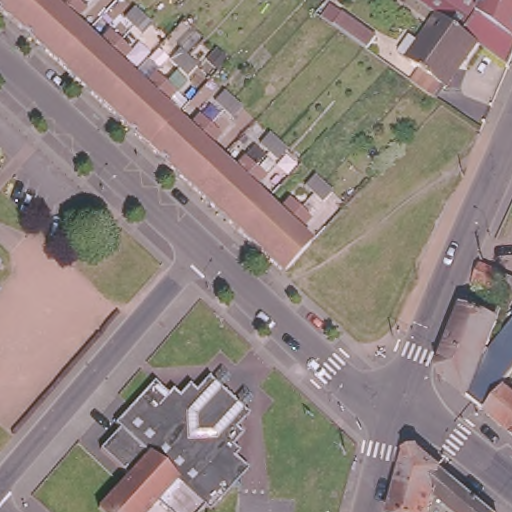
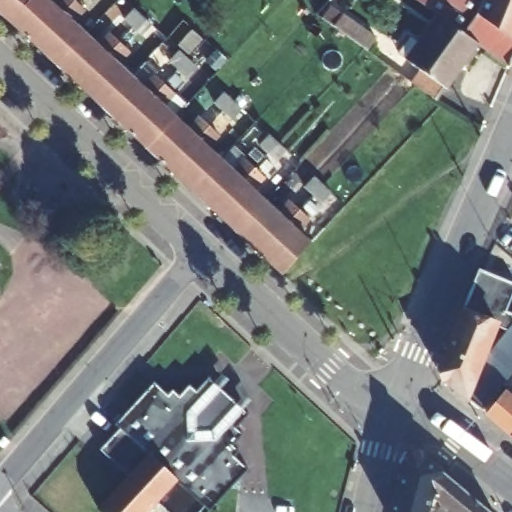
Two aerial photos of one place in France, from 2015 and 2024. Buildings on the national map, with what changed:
unchanged [(0,17),(0,0),(32,0),(10,26),(0,17)]
unchanged [(58,0),(72,0),(73,1),(33,45),(21,35),(10,26),(32,0),(43,0),(51,7),(58,0)]
unchanged [(506,64),(494,56),(493,55),(474,41),(462,33),(448,23),(437,15),(424,6),(419,2),(420,0),(512,0),(512,50),(506,64)]
unchanged [(56,67),(52,63),(33,45),(73,1),(84,11),(71,26),(84,38),(56,67)]
unchanged [(142,36),(133,28),(125,21),(135,10),(142,16),(151,26),(142,36)]
unchanged [(448,23),(462,33),(474,41),(443,84),(441,83),(431,96),(409,81),(419,66),(409,60),(418,46),(414,45),(437,15),(448,23)]
unchanged [(98,49),(110,36),(118,44),(79,89),(56,67),(84,38),(98,49)]
unchanged [(99,108),(79,89),(118,44),(130,55),(118,69),(128,78),(99,108)]
unchanged [(187,79),(178,70),(171,62),(180,53),(188,60),(196,69),(187,79)]
unchanged [(141,90),(154,76),(164,86),(123,130),(110,118),(99,108),(128,78),(141,90)]
unchanged [(173,95),(161,109),(173,121),(145,151),(123,130),(164,86),(173,95)]
unchanged [(232,121),(223,113),(215,105),(224,95),(233,103),(241,111),(232,121)]
unchanged [(168,172),(145,151),(173,121),(186,133),(199,119),(209,128),(168,172)]
unchanged [(218,138),(206,151),(218,161),(189,193),(169,173),(168,172),(209,128),(218,138)]
unchanged [(276,161),(268,153),(259,144),(268,135),(276,144),(284,153),(276,161)]
unchanged [(229,172),(242,159),(253,169),(211,213),(189,193),(218,161),(229,172)]
unchanged [(263,179),(250,192),(263,204),(234,235),(228,228),(211,213),(253,169),(263,179)]
unchanged [(321,204),(313,196),(303,187),(311,177),(321,187),(329,195),(321,204)]
unchanged [(256,255),(234,235),(263,204),(274,215),(287,202),(298,211),(256,255)]
unchanged [(280,277),(256,255),(298,211),(307,221),(295,234),(309,246),(280,277)]
demolished [(502,284),(499,290),(476,281),(483,264),(486,265),(512,275),(512,287),(502,284)]
new [(479,270),(512,283),(512,296),(504,316),(512,320),(512,331),(509,336),(502,333),(496,330),(493,328),(498,314),(465,301),(479,270)]
unchanged [(480,415),(439,382),(437,369),(438,368),(465,301),(498,314),(493,328),(496,330),(485,356),(489,359),(512,331),(512,376),(480,415)]
unchanged [(228,490),(207,512),(204,512),(201,510),(199,512),(154,512),(151,510),(149,512),(107,512),(103,508),(130,478),(103,452),(123,430),(118,425),(155,383),(168,395),(173,391),(178,397),(189,385),(196,390),(209,375),(209,376),(249,413),(236,428),(242,434),(231,446),(238,452),(233,458),(245,470),(236,480),(238,490),(228,490)]
unchanged [(508,438),(487,421),(504,397),(512,387),(512,441),(508,438)]
unchanged [(387,512),(404,448),(416,446),(440,466),(427,512),(388,512),(387,512)]
unchanged [(440,466),(497,512),(427,512),(440,466)]

